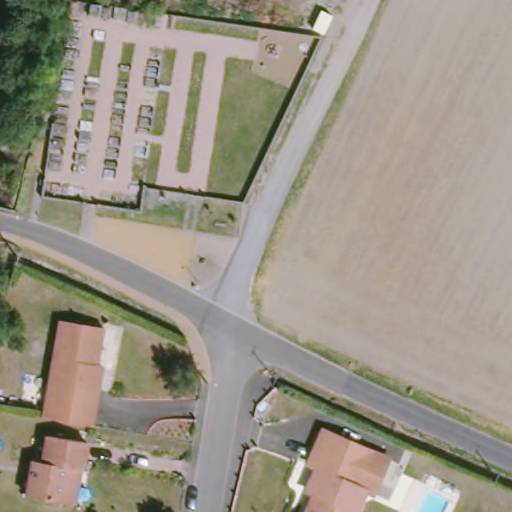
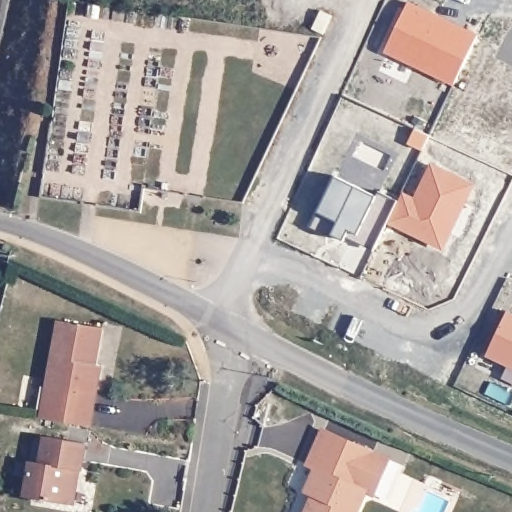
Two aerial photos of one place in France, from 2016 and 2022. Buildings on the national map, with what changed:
new [(454,90),(380,54),(406,1),(476,36),(454,90)]
new [(441,251),(386,223),(400,194),(414,197),(432,165),(474,186),(441,251)]
new [(355,234),(345,230),(341,241),(330,236),(335,222),(315,214),(332,176),(374,197),(355,234)]
new [(483,357),(505,312),(512,315),(512,371),(483,357)]
unchanged [(41,416),(60,322),(100,329),(92,376),(100,377),(90,426),(41,416)]
unchanged [(314,490),(305,487),(314,468),(305,465),(320,431),(367,451),(381,457),(367,490),(360,487),(350,512),(305,512),(314,490)]
unchanged [(22,497),(29,462),(40,465),(45,437),(84,445),(79,472),(69,471),(62,507),(22,497)]

